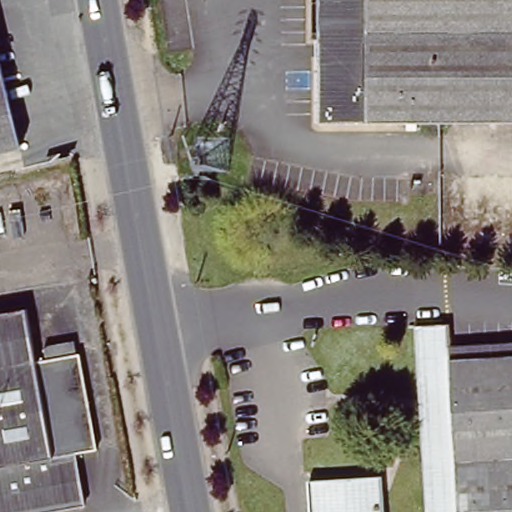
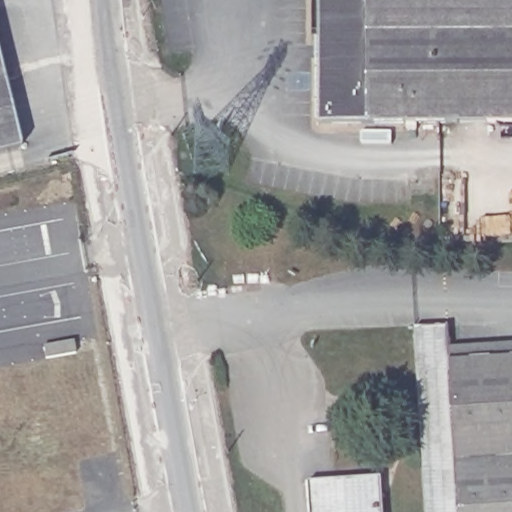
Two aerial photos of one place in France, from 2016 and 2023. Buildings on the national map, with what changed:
unchanged [(318,0),(512,0),(512,125),(320,125),(318,0)]
unchanged [(22,152),(0,158),(0,60),(22,152)]
demolished [(82,360),(98,457),(71,462),(80,509),(64,512),(0,512),(0,318),(28,313),(37,368),(82,360)]
unchanged [(450,342),(512,340),(512,512),(428,512),(415,324),(450,323),(450,342)]
unchanged [(383,476),(385,512),(312,512),(310,480),(383,476)]

